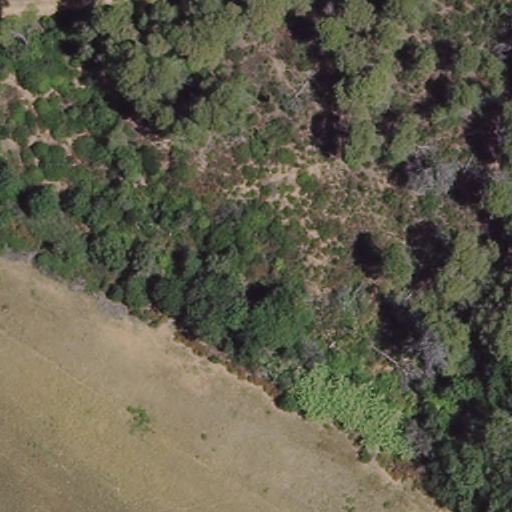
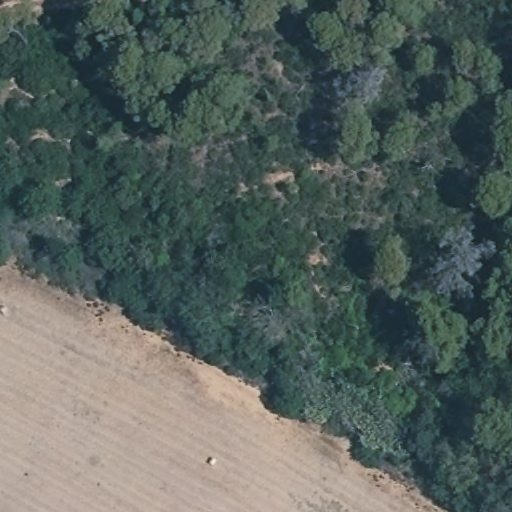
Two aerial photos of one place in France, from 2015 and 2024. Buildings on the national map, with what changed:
[]

